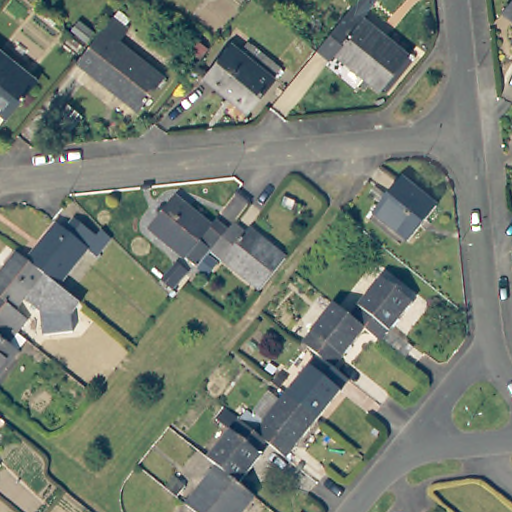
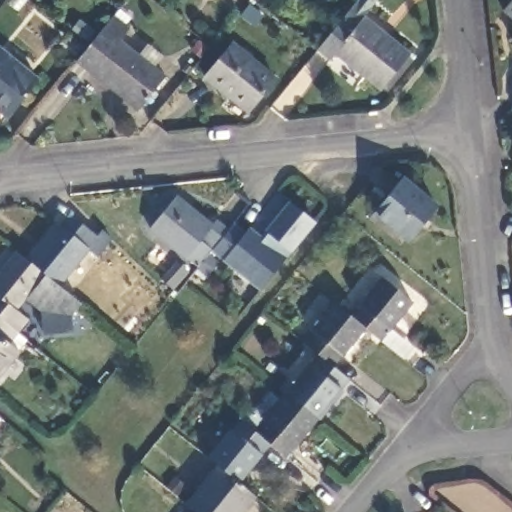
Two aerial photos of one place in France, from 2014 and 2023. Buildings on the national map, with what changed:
unchanged [(377,0),(362,18),(409,55),(380,91),(336,55),(330,61),(317,50),(358,0),(377,0)]
unchanged [(512,3),(512,19),(504,13),(512,3)]
unchanged [(165,75),(138,109),(77,61),(89,46),(104,27),(165,75)]
unchanged [(256,68),(262,60),(276,72),(270,80),(271,82),(244,116),(201,81),(229,47),(256,68)]
unchanged [(40,79),(2,125),(0,123),(0,48),(40,79)]
unchanged [(437,205),(408,240),(375,213),(400,181),(402,178),(437,205)]
unchanged [(210,250),(197,267),(149,229),(174,198),(210,226),(215,220),(226,230),(210,250)]
new [(285,259),(260,237),(290,201),(316,222),(292,251),(285,259)]
unchanged [(26,260),(57,223),(65,229),(75,218),(96,235),(102,229),(111,236),(101,249),(94,243),(59,286),(45,275),(26,260)]
unchanged [(232,223),(245,232),(249,228),(285,258),(259,290),(210,250),(226,230),(232,223)]
unchanged [(2,321),(0,319),(0,273),(16,252),(26,260),(45,275),(17,311),(28,320),(18,333),(2,321)]
unchanged [(80,304),(71,316),(74,333),(43,336),(40,313),(25,301),(45,275),(59,286),(80,304)]
unchanged [(380,276),(412,302),(382,340),(366,327),(350,314),(380,276)]
unchanged [(366,327),(335,366),(318,353),(302,340),(334,301),(350,314),(366,327)]
unchanged [(10,344),(18,351),(0,373),(0,319),(2,321),(18,333),(10,344)]
unchanged [(318,353),(335,366),(350,379),(318,418),(286,392),(318,353)]
unchanged [(318,418),(286,457),(270,444),(239,418),(245,409),(252,415),(254,412),(263,420),(286,392),(318,418)]
unchanged [(207,456),(229,429),(215,417),(224,406),(239,418),(270,444),(239,482),(217,465),(207,456)]
unchanged [(1,419),(0,420),(0,418),(1,419)]
unchanged [(185,504),(217,465),(239,482),(255,495),(242,512),(196,512),(185,504)]

